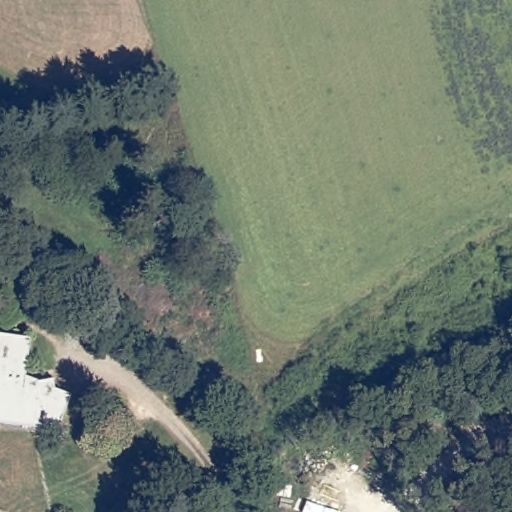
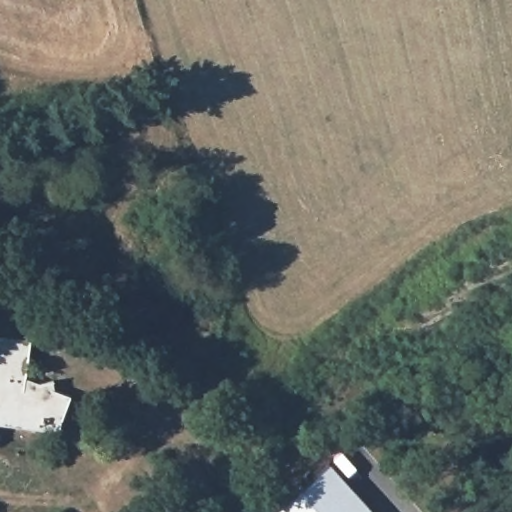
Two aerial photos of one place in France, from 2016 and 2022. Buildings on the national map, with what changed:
unchanged [(33,338),(26,383),(39,385),(41,380),(53,376),(56,391),(71,394),(63,415),(60,432),(0,423),(0,335),(33,338)]
new [(331,460),(377,512),(273,512),(331,460)]

